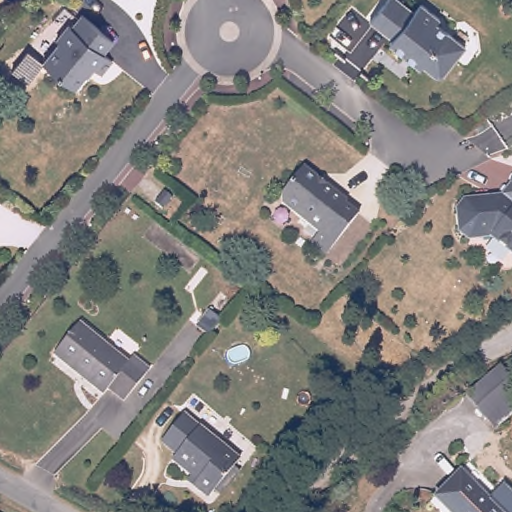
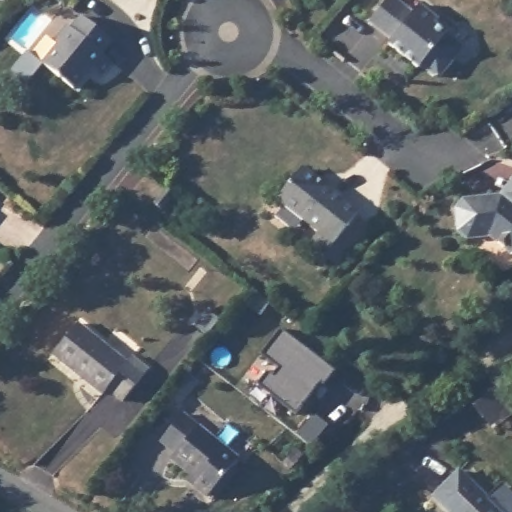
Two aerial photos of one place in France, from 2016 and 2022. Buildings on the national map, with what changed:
unchanged [(398,37),(378,20),(393,0),(406,0),(419,9),(425,2),(445,19),(441,24),(470,46),(451,72),(440,76),(431,65),(426,68),(418,62),(409,54),(394,42),(398,37)]
unchanged [(104,52),(113,60),(103,72),(94,65),(76,87),(46,65),(63,45),(58,40),(68,27),(73,28),(81,16),(113,39),(104,52)]
unchanged [(312,244),(318,236),(321,232),(289,207),(287,195),(305,172),(315,180),(319,175),(328,183),(348,198),(345,203),(359,215),(334,248),(328,256),(312,244)]
unchanged [(470,235),(461,228),(462,204),(470,196),(496,194),(504,193),(512,183),(512,249),(491,232),(470,235)]
unchanged [(156,209),(166,198),(173,204),(164,215),(156,209)]
unchanged [(197,323),(208,308),(222,317),(209,333),(197,323)]
demolished [(188,338),(199,323),(213,332),(200,348),(188,338)]
unchanged [(122,362),(129,354),(143,367),(118,397),(102,386),(97,393),(57,359),(82,328),(122,362)]
new [(266,370),(271,375),(276,368),(259,354),(279,328),(334,371),(322,386),(319,384),(294,415),(255,384),(266,370)]
unchanged [(494,377),(512,396),(512,421),(493,440),(462,407),(494,377)]
unchanged [(238,461),(208,499),(190,488),(195,483),(170,463),(176,457),(161,441),(184,415),(238,461)]
unchanged [(500,484),(512,496),(512,512),(445,512),(430,498),(453,473),(486,501),(500,484)]

